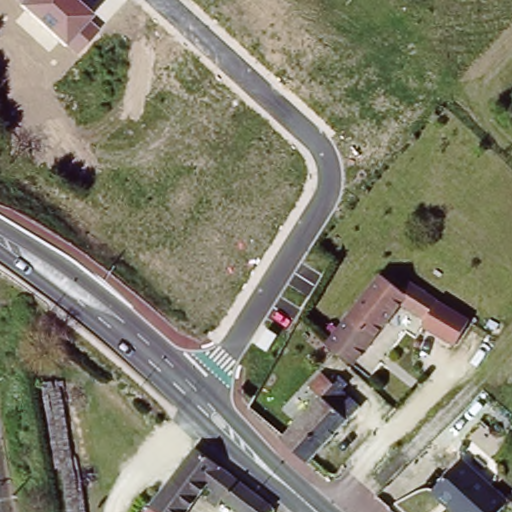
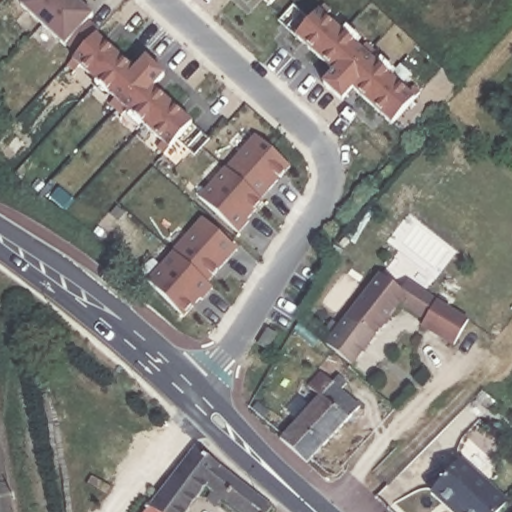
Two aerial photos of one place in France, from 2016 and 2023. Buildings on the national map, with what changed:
unchanged [(89,21),(99,30),(78,56),(65,45),(16,0),(78,0),(94,15),(89,21)]
new [(262,0),(275,0),(269,7),(262,0)]
new [(392,127),(353,90),(342,101),(321,84),(331,71),(295,38),(319,10),(416,99),(392,127)]
new [(171,151),(73,60),(78,56),(98,32),(133,68),(146,56),(166,76),(153,89),(194,124),(171,151)]
new [(263,200),(264,202),(248,219),(251,222),(240,234),(198,198),(224,167),(226,168),(256,134),(292,168),(263,200)]
new [(209,284),(214,288),(201,302),(199,300),(183,317),(146,281),(203,218),(239,250),(209,284)]
unchanged [(331,344),(352,316),(354,316),(385,276),(406,291),(414,283),(439,298),(436,303),(468,322),(453,345),(422,326),(427,317),(406,304),(359,365),(344,354),(331,344)]
unchanged [(294,431),(319,402),(308,392),(321,378),(333,389),(339,382),(347,389),(342,395),(359,411),(319,453),(301,473),(274,450),(294,431)]
unchanged [(221,500),(217,506),(207,498),(211,493),(206,488),(187,512),(144,512),(186,458),(194,447),(269,505),(272,507),(268,512),(238,512),(221,500)]
unchanged [(432,494),(460,464),(507,507),(503,512),(451,512),(432,494)]

